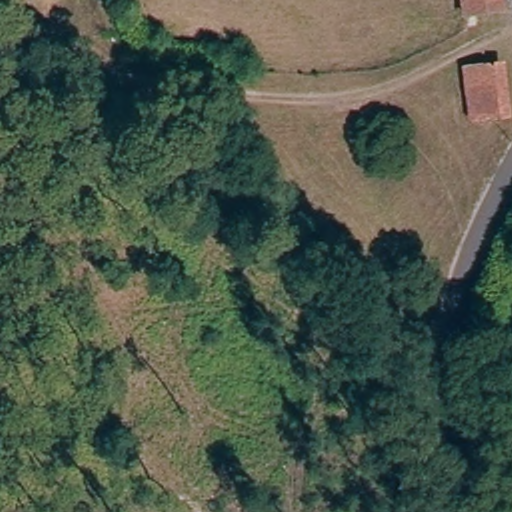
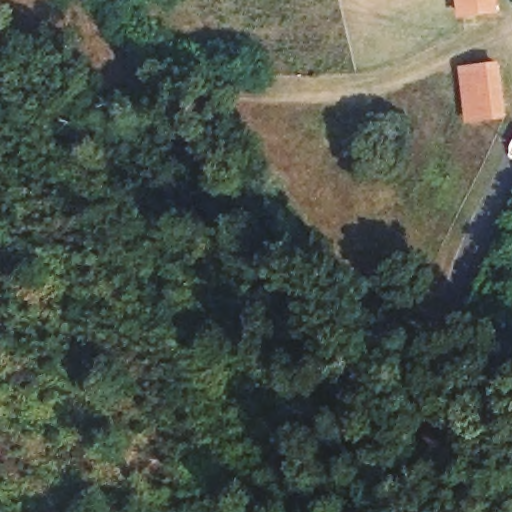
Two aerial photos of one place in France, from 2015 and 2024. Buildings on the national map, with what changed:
unchanged [(470,18),(467,0),(504,0),(506,13),(470,18)]
unchanged [(471,120),(468,69),(503,65),(506,118),(471,120)]

